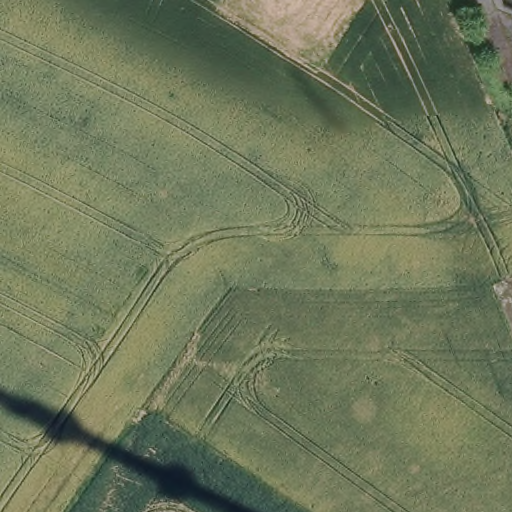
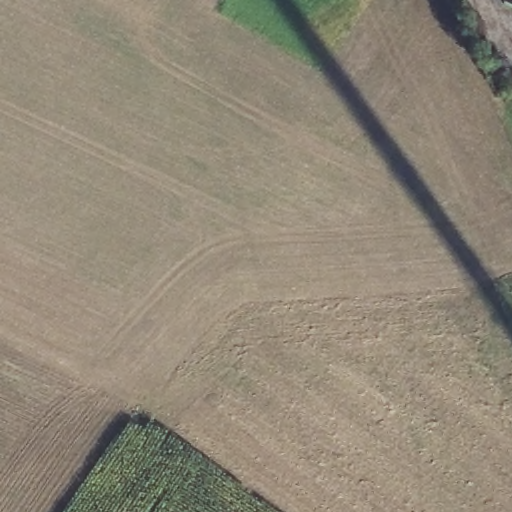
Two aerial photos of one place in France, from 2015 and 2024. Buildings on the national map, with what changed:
[]

